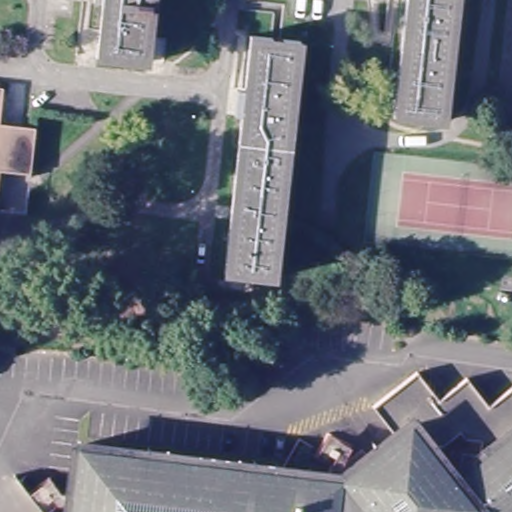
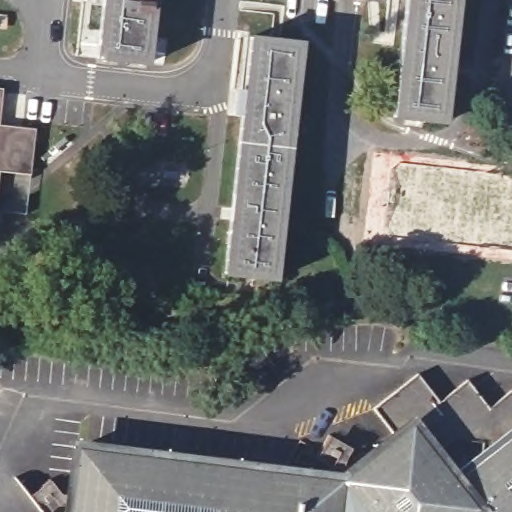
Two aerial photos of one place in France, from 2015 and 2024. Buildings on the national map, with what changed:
unchanged [(100,0),(151,0),(144,62),(94,57),(100,0)]
unchanged [(447,125),(396,117),(409,0),(461,0),(447,125)]
unchanged [(304,42),(277,277),(226,271),(254,36),(304,42)]
unchanged [(30,177),(0,173),(0,130),(37,134),(30,177)]
unchanged [(64,509),(60,512),(44,512),(33,498),(54,482),(65,496),(72,497),(76,452),(282,474),(283,470),(341,476),(394,433),(373,406),(418,371),(439,397),(467,376),(489,403),(512,387),(512,512),(70,512),(70,510),(64,509)]

